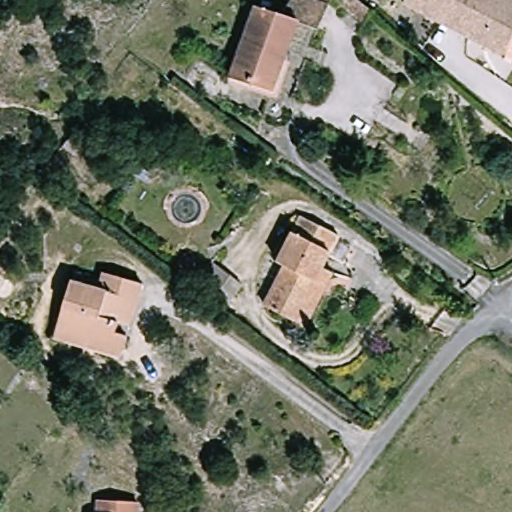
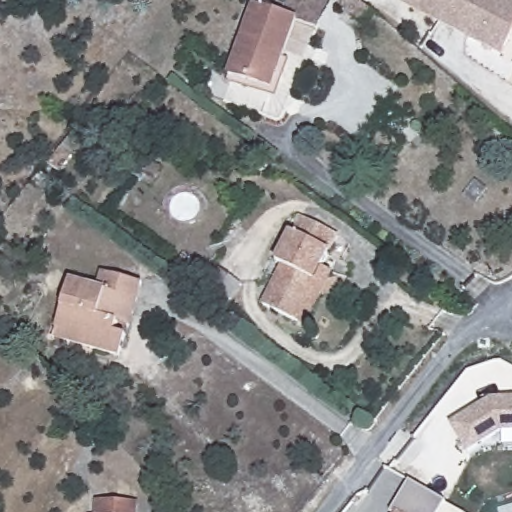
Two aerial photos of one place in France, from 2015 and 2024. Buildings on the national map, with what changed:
unchanged [(343,0),(345,0),(372,20),(362,32),(335,11),(343,0)]
unchanged [(403,3),(404,0),(511,0),(512,1),(512,39),(503,56),(403,3)]
unchanged [(317,40),(297,31),(273,99),(231,84),(256,15),(285,25),(293,1),(315,9),(318,1),(330,5),(317,40)]
unchanged [(72,157),(60,172),(47,163),(59,147),(72,157)]
unchanged [(309,327),(302,324),(268,306),(289,266),(282,263),(306,217),(343,236),(327,267),(337,272),(309,327)]
unchanged [(208,260),(239,283),(222,306),(191,283),(208,260)]
unchanged [(62,323),(75,281),(103,290),(107,273),(147,284),(134,328),(123,325),(120,334),(131,337),(125,358),(93,349),(58,338),(62,323)]
new [(495,397),(512,398),(512,432),(498,431),(463,450),(447,420),(477,404),(489,397),(495,397)]
new [(447,508),(444,512),(396,512),(412,486),(447,508)]
unchanged [(136,512),(96,512),(97,501),(137,504),(136,512)]

